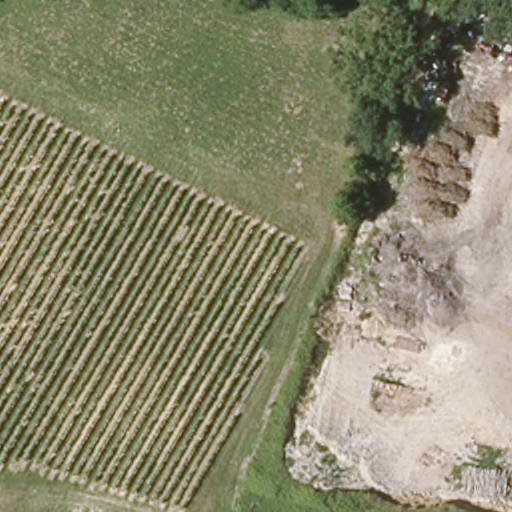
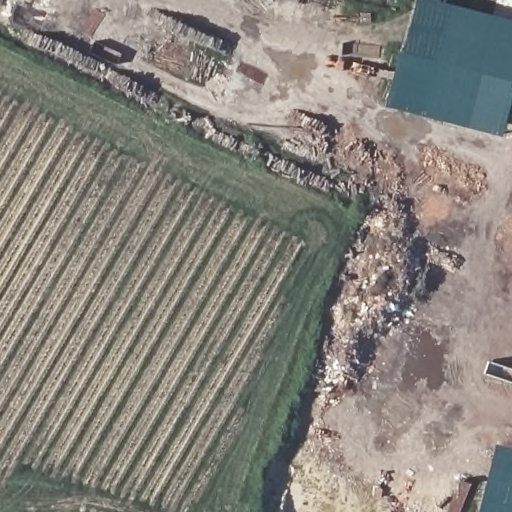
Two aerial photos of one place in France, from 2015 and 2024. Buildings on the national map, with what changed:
new [(426,117),(386,106),(400,49),(405,50),(418,0),(440,0),(453,3),(452,7),(426,117)]
new [(512,23),(512,94),(502,137),(426,117),(452,7),(512,23)]
new [(512,448),(512,512),(481,512),(497,444),(512,448)]
demolished [(0,512),(0,498),(18,502),(15,512),(0,512)]

